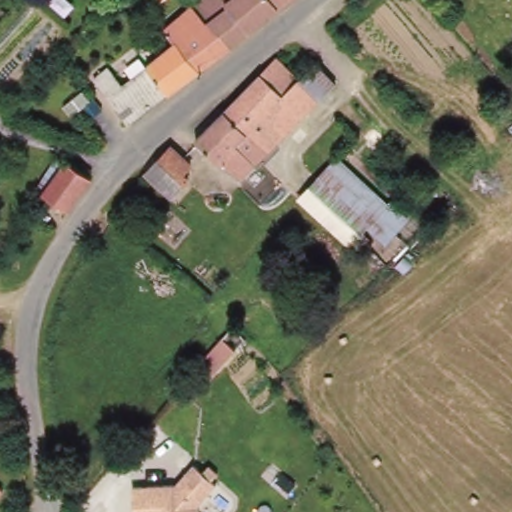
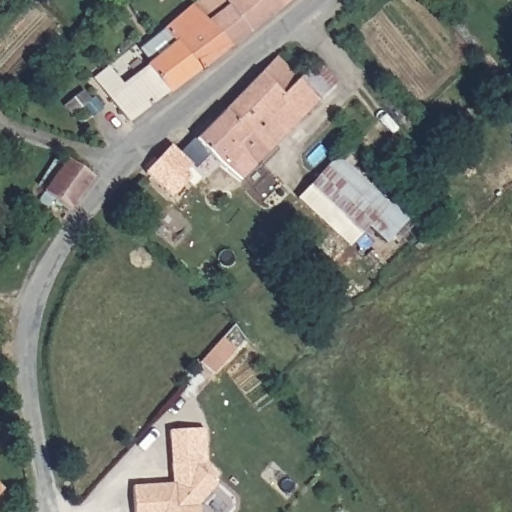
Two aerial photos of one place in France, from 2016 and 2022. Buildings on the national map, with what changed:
unchanged [(176,54),(169,45),(168,45),(159,35),(174,20),(165,10),(174,0),(175,0),(189,13),(226,51),(195,73),(176,54)]
unchanged [(204,0),(289,0),(226,51),(189,13),(204,0)]
unchanged [(120,87),(144,67),(168,45),(169,45),(176,54),(195,73),(125,125),(91,81),(107,69),(120,87)]
unchanged [(308,71),(301,79),(261,122),(276,136),(234,179),(219,165),(247,135),(224,112),(285,50),(296,60),(308,71)]
unchanged [(316,69),(333,85),(322,99),(240,185),(234,179),(276,136),(261,122),(301,79),(304,81),(316,69)]
unchanged [(247,135),(219,165),(195,141),(224,112),(247,135)]
unchanged [(315,136),(404,221),(383,243),(293,160),(315,136)]
unchanged [(184,194),(180,189),(172,197),(156,181),(153,184),(144,174),(169,150),(170,150),(194,175),(191,177),(196,181),(184,194)]
unchanged [(42,194),(65,165),(92,186),(71,215),(42,194)]
new [(191,467),(176,483),(173,483),(169,430),(204,429),(206,463),(217,473),(211,483),(191,467)]
unchanged [(130,486),(176,483),(191,467),(215,486),(197,505),(197,512),(133,512),(130,486)]
unchanged [(3,490),(0,493),(0,487),(3,490)]

